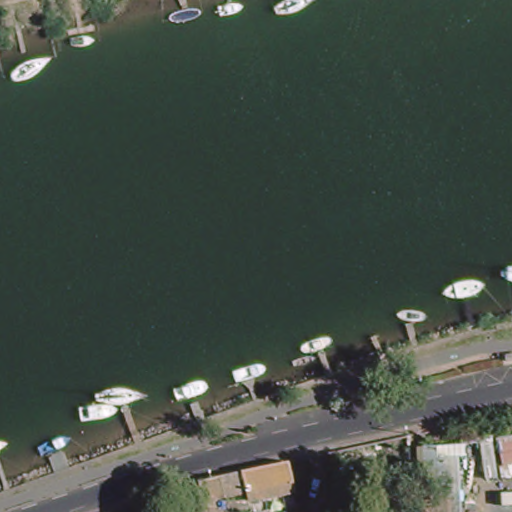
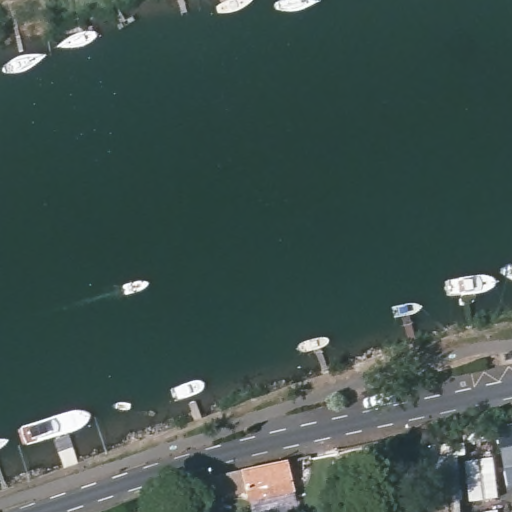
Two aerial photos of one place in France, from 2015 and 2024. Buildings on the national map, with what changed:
unchanged [(493,438),(512,434),(512,475),(500,476),(493,438)]
unchanged [(463,440),(465,458),(456,460),(459,512),(437,512),(431,467),(419,467),(418,449),(463,440)]
unchanged [(295,491),(251,501),(249,493),(225,499),(224,494),(198,500),(200,482),(289,462),(295,491)]
unchanged [(222,512),(198,512),(198,507),(221,508),(222,508),(222,512)]

